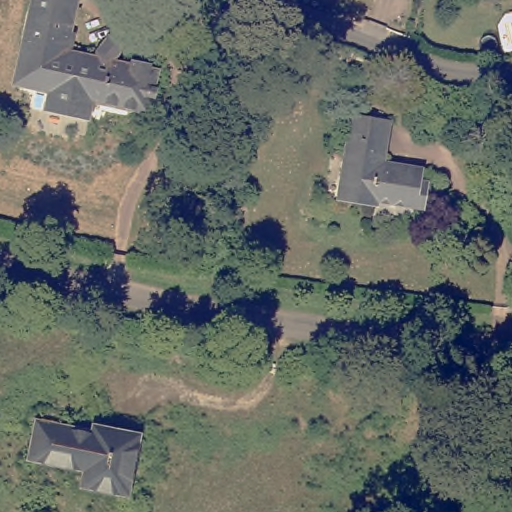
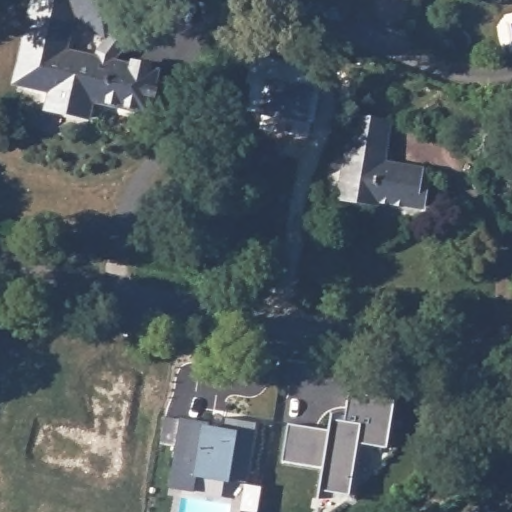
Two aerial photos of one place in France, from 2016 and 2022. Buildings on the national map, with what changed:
unchanged [(44,108),(48,83),(26,77),(32,50),(22,48),(29,15),(24,14),(27,0),(31,0),(70,0),(62,36),(64,37),(67,39),(68,42),(68,44),(66,47),(64,49),(62,50),(59,50),(58,57),(91,65),(94,56),(96,52),(108,60),(107,63),(106,68),(126,72),(127,67),(143,70),(142,76),(148,78),(139,115),(84,103),(80,116),(44,108)]
unchanged [(341,193),(352,116),(385,121),(378,164),(420,171),(419,183),(426,184),(422,206),(341,193)]
new [(328,430),(330,419),(331,413),(345,416),(349,392),(394,400),(387,448),(358,443),(349,495),(318,491),(322,468),(282,462),(288,424),(328,430)]
new [(208,428),(220,430),(222,418),(257,423),(247,484),(262,486),(258,512),(237,512),(233,511),(238,481),(227,479),(196,474),(193,490),(169,487),(180,420),(207,423),(208,428)]
demolished [(80,487),(84,469),(28,459),(35,420),(91,430),(92,425),(138,434),(126,495),(80,487)]

